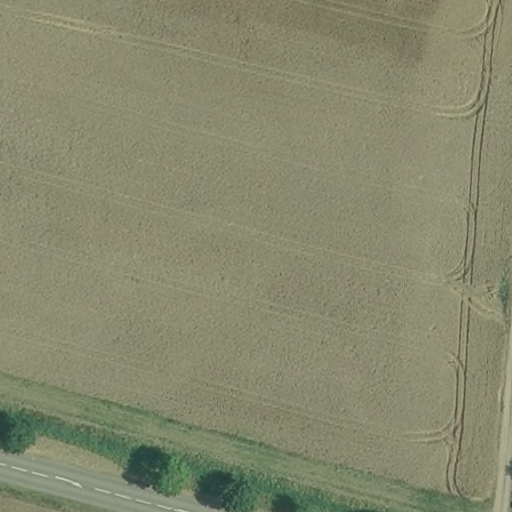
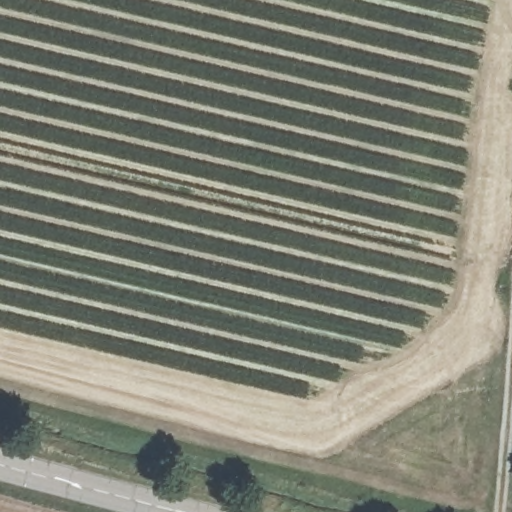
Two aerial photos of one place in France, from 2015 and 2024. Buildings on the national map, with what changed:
[]

